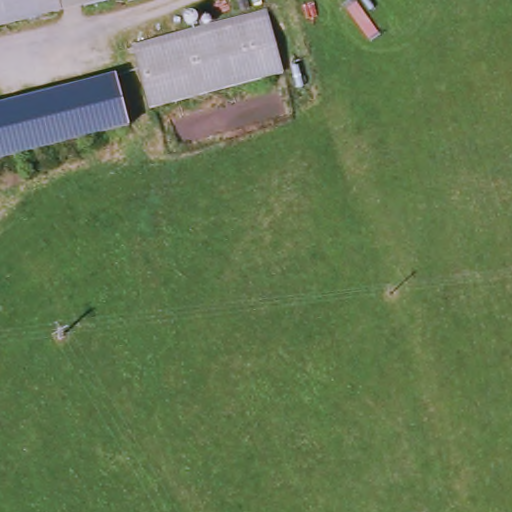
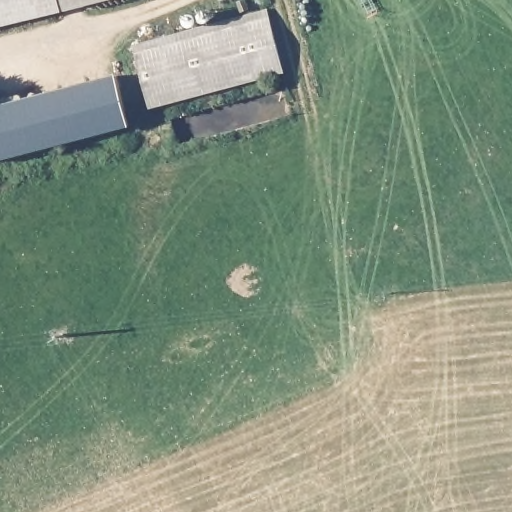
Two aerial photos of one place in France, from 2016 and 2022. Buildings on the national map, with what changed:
unchanged [(0,0),(117,0),(55,15),(0,26),(0,0)]
unchanged [(267,11),(284,72),(150,108),(135,46),(267,11)]
unchanged [(130,126),(0,159),(0,106),(117,76),(130,126)]

